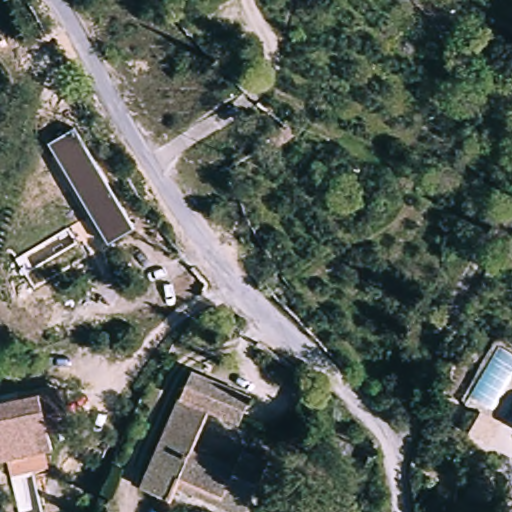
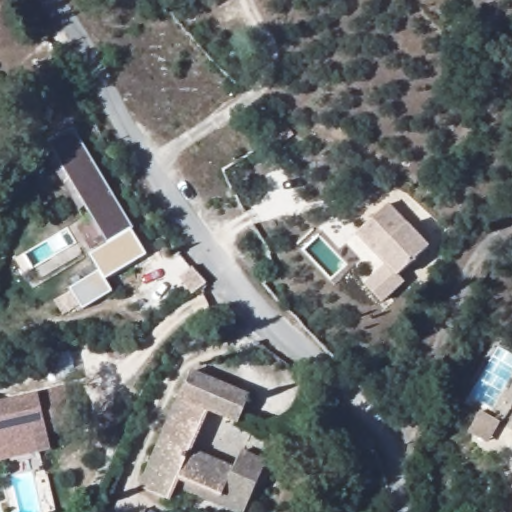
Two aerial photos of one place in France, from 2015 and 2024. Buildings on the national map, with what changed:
unchanged [(50,144),(73,129),(132,229),(109,242),(50,144)]
new [(351,232),(382,204),(423,248),(392,276),(398,281),(375,302),(360,285),(381,265),(351,232)]
new [(70,286),(100,268),(112,290),(82,307),(65,317),(57,302),(74,292),(70,286)]
unchanged [(165,497),(139,486),(188,374),(243,397),(232,422),(201,409),(185,447),(227,466),(233,452),(263,465),(247,501),(242,512),(231,512),(170,485),(165,497)]
unchanged [(6,408),(61,397),(76,394),(85,432),(56,438),(59,454),(13,464),(0,467),(0,406),(6,408)]

